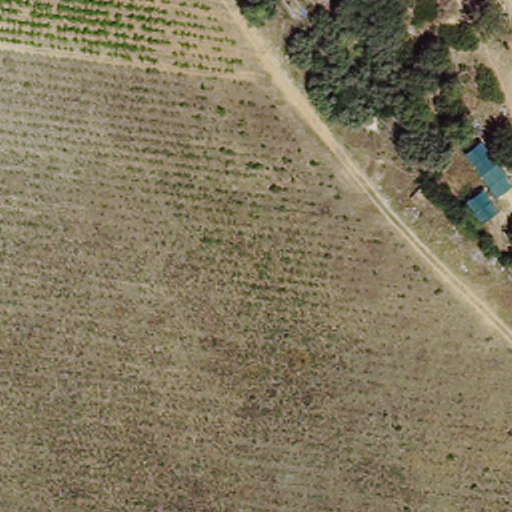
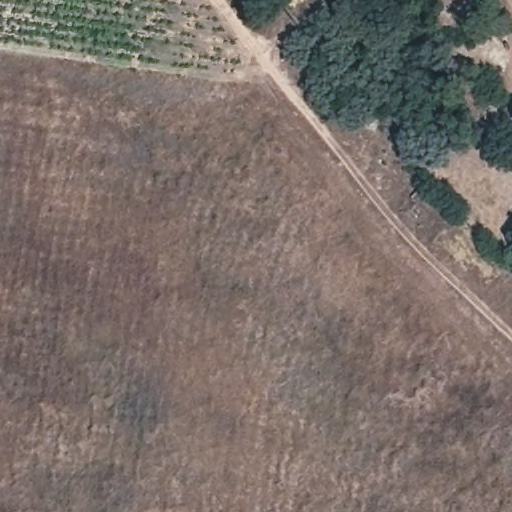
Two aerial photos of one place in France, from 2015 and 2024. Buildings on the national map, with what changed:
[]

